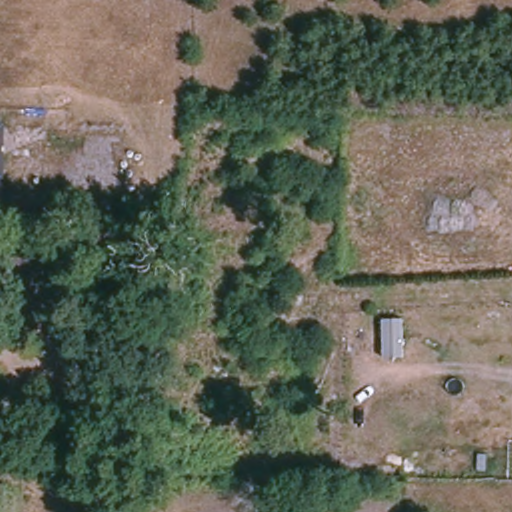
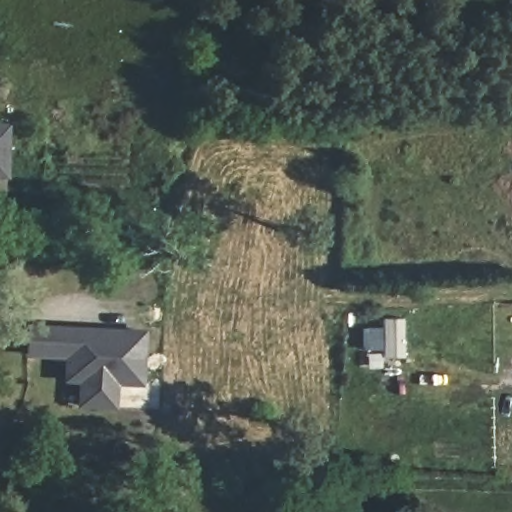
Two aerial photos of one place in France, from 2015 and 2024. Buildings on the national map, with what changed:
unchanged [(4,150),(7,150),(2,190),(0,190),(0,123),(5,123),(4,150)]
new [(115,384),(114,410),(74,408),(74,382),(61,381),(61,358),(23,356),(25,322),(143,328),(142,386),(115,384)]

